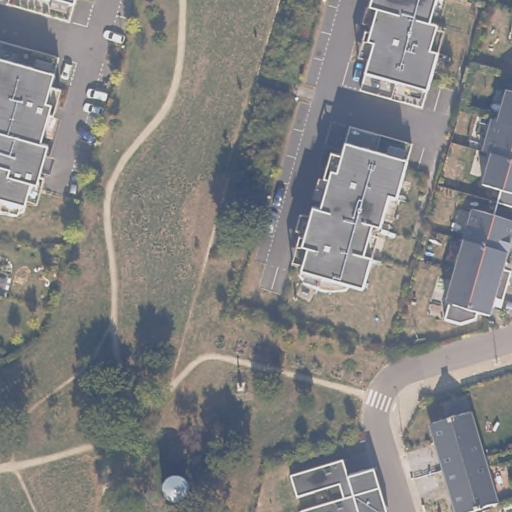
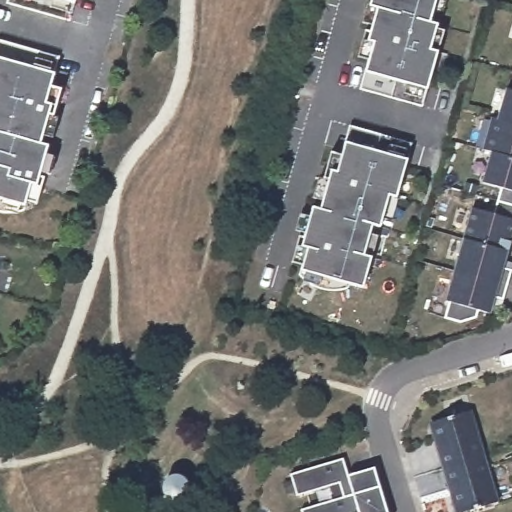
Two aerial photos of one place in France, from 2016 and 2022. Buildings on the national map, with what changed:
unchanged [(74,22),(11,4),(13,0),(80,0),(74,22)]
unchanged [(365,33),(369,34),(376,11),(368,9),(371,0),(438,0),(430,23),(438,26),(437,29),(444,32),(438,53),(435,62),(434,62),(422,108),(360,91),(368,62),(357,59),(365,33)]
unchanged [(45,104),(51,106),(42,138),(49,141),(38,180),(32,179),(25,205),(24,205),(23,205),(23,206),(22,206),(21,206),(20,206),(19,207),(18,207),(17,207),(16,207),(15,207),(14,207),(13,207),(12,207),(10,207),(9,207),(8,207),(7,207),(6,207),(5,207),(4,207),(3,207),(2,207),(2,206),(0,206),(0,41),(58,58),(45,104)]
unchanged [(506,90),(512,92),(512,125),(500,122),(497,121),(506,90)]
unchanged [(497,121),(500,122),(512,125),(512,158),(499,155),(491,152),(483,150),(492,119),(497,121)]
unchanged [(411,142),(408,161),(398,201),(390,199),(364,290),(300,273),(306,251),(301,249),(312,208),(318,209),(327,181),(323,180),(330,154),(342,156),(346,142),(350,124),(411,142)]
unchanged [(499,155),(512,158),(512,206),(498,202),(500,194),(502,188),(483,183),(491,152),(499,155)]
unchanged [(494,215),(498,202),(512,206),(512,238),(508,252),(495,249),(464,240),(473,209),(494,215)]
unchanged [(495,249),(508,252),(503,268),(511,271),(507,285),(468,274),(455,271),(464,240),(495,249)]
unchanged [(468,274),(507,285),(503,300),(495,298),(490,314),(478,311),(476,318),(461,323),(445,318),(449,302),(446,301),(455,271),(468,274)]
unchanged [(438,453),(440,453),(432,424),(471,412),(485,457),(470,462),(443,470),(438,453)]
unchanged [(485,457),(496,494),(499,503),(468,512),(459,512),(453,495),(450,486),(448,486),(443,470),(470,462),(485,457)]
unchanged [(350,475),(375,468),(387,512),(302,512),(301,510),(335,500),(332,487),(297,499),(289,474),(345,458),(350,475)]
unchanged [(172,473),(173,473),(176,474),(179,476),(181,480),(182,483),(182,487),(181,491),(178,494),(175,496),(171,497),(167,496),(164,495),(161,493),(160,491),(159,490),(159,489),(158,488),(158,486),(158,482),(160,478),(162,475),(165,473),(169,472),(170,472),(171,473),(172,473)]

